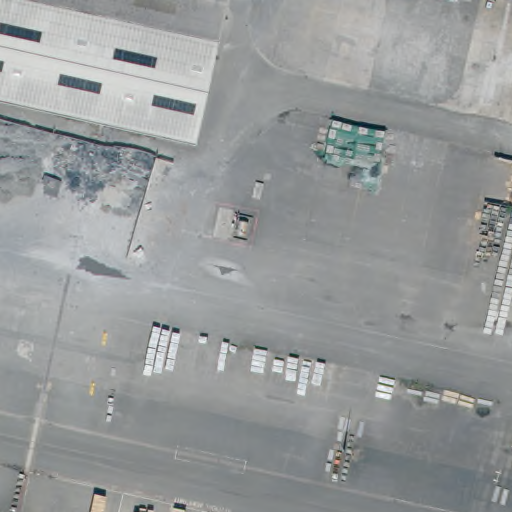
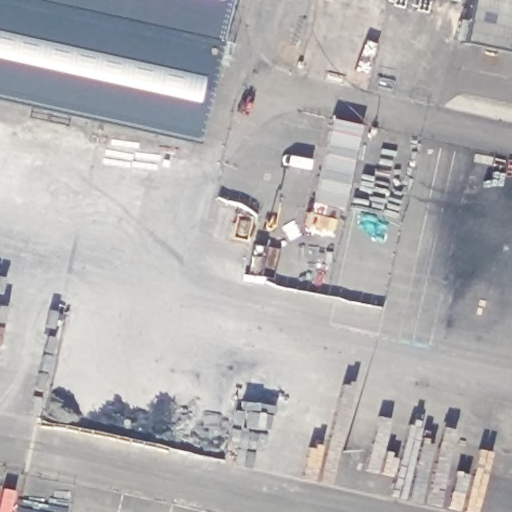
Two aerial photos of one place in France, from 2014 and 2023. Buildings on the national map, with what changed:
unchanged [(191,146),(0,104),(0,0),(223,0),(191,146)]
new [(512,1),(512,54),(463,42),(470,0),(507,0),(512,1)]
unchanged [(512,1),(507,0),(512,0),(512,1)]

